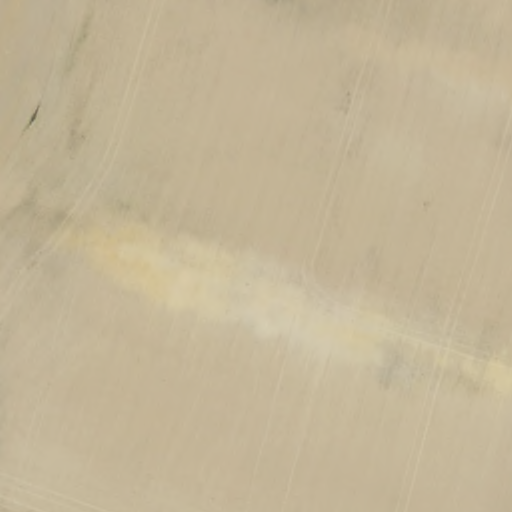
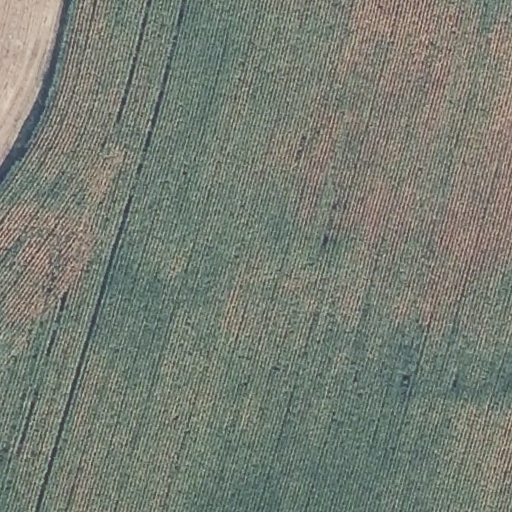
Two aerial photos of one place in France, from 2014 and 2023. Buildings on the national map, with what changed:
[]

